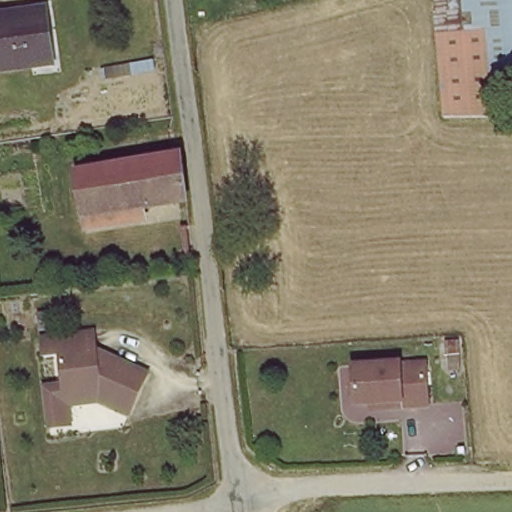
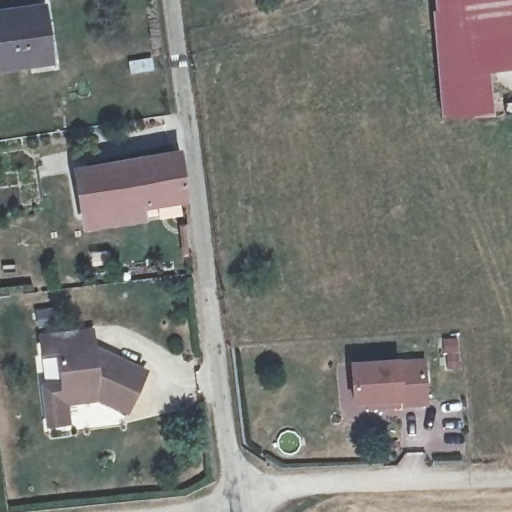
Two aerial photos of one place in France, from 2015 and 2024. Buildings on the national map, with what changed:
unchanged [(478,68),(475,27),(433,30),(430,0),(512,0),(512,66),(478,68)]
unchanged [(55,70),(0,74),(0,15),(50,10),(55,70)]
unchanged [(475,27),(478,68),(482,115),(439,117),(433,30),(475,27)]
unchanged [(179,148),(189,205),(146,212),(146,227),(78,236),(73,168),(179,148)]
unchanged [(45,426),(40,386),(60,383),(55,354),(40,356),(38,337),(90,332),(93,348),(143,371),(125,411),(90,396),(63,399),(65,423),(45,426)]
unchanged [(368,400),(353,401),(351,363),(423,358),(426,402),(399,404),(369,406),(368,400)]

